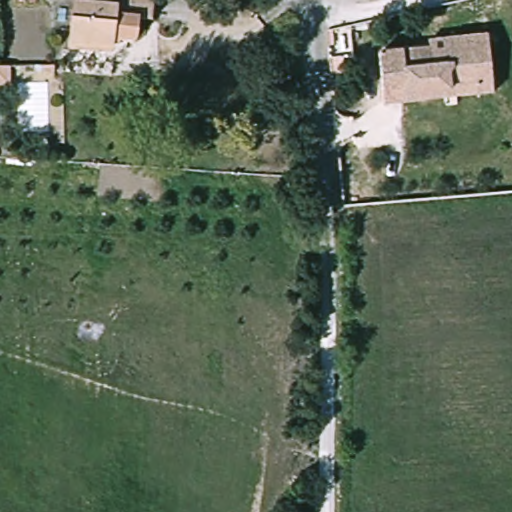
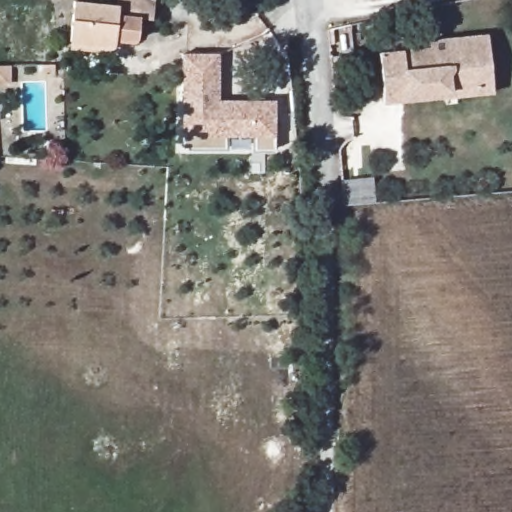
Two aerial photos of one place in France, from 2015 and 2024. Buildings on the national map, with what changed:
unchanged [(81,3),(59,2),(59,0),(81,0),(81,3)]
unchanged [(154,27),(153,47),(129,46),(129,54),(84,53),(84,11),(131,13),(131,3),(131,0),(164,0),(164,4),(164,27),(154,27)]
unchanged [(425,42),(484,38),(487,90),(474,91),(471,45),(445,47),(445,53),(425,54),(425,50),(425,42)]
unchanged [(403,95),(403,101),(378,102),(375,53),(425,50),(425,54),(445,53),(445,47),(471,45),(474,91),(403,95)]
new [(221,54),(220,100),(276,100),(276,137),(276,151),(253,152),(253,138),(227,138),(227,150),(183,150),(183,137),(182,54),(221,54)]
unchanged [(0,69),(16,69),(16,91),(0,91),(0,69)]

